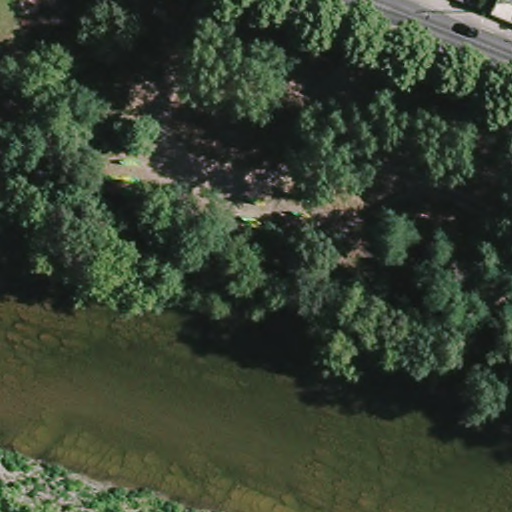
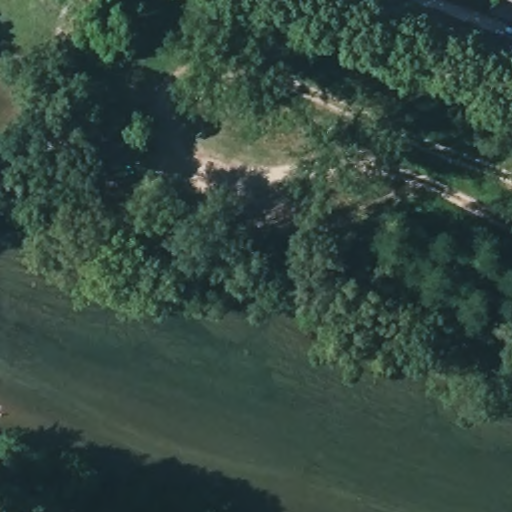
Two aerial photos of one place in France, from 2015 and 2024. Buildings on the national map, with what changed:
unchanged [(490,16),(497,0),(512,0),(512,23),(511,25),(490,16)]
unchanged [(97,153),(97,154),(97,155),(96,155),(96,156),(96,157),(96,158),(96,159),(96,160),(95,160),(95,161),(95,162),(95,163),(95,164),(95,165),(94,165),(94,166),(93,167),(93,168),(93,169),(92,169),(91,170),(91,171),(90,172),(90,173),(89,174),(88,175),(88,176),(87,176),(86,177),(86,178),(85,178),(85,179),(84,179),(83,180),(82,181),(81,181),(80,182),(79,183),(78,183),(78,184),(77,184),(76,184),(76,185),(75,185),(74,185),(73,185),(72,186),(71,186),(70,187),(69,187),(68,187),(67,187),(66,187),(66,188),(65,188),(64,188),(63,188),(61,188),(58,188),(55,188),(53,187),(52,187),(51,187),(50,187),(48,186),(47,186),(46,185),(45,185),(43,184),(42,183),(41,183),(40,183),(40,182),(38,181),(38,180),(37,180),(36,180),(36,179),(35,179),(35,178),(34,177),(33,177),(33,176),(32,175),(31,174),(30,173),(30,172),(29,171),(28,171),(28,170),(28,169),(27,168),(27,167),(26,167),(26,166),(26,165),(25,164),(25,163),(25,162),(25,161),(24,160),(24,159),(24,158),(23,158),(23,157),(23,156),(23,155),(23,154),(23,153),(23,152),(23,151),(23,150),(23,149),(23,148),(23,147),(23,146),(23,145),(23,144),(24,144),(24,143),(24,142),(25,142),(25,141),(25,140),(25,139),(25,138),(25,137),(26,137),(26,136),(26,135),(27,134),(28,134),(28,133),(28,132),(29,131),(30,131),(30,130),(30,129),(31,128),(31,127),(32,127),(33,126),(34,125),(35,124),(35,123),(36,123),(36,122),(37,122),(38,122),(38,121),(39,120),(40,120),(41,119),(42,119),(43,118),(44,118),(45,117),(46,117),(47,116),(48,116),(49,116),(50,116),(50,115),(51,115),(52,115),(53,115),(54,115),(55,114),(56,114),(58,114),(59,114),(60,114),(61,114),(62,114),(63,114),(65,114),(65,115),(66,115),(67,115),(68,115),(69,115),(70,115),(70,116),(71,116),(72,116),(73,116),(73,117),(75,117),(76,118),(77,118),(78,119),(79,119),(80,120),(81,121),(82,121),(83,122),(83,123),(84,123),(85,123),(85,124),(86,125),(87,126),(88,126),(88,127),(88,128),(89,128),(90,129),(90,130),(91,131),(91,132),(92,132),(92,133),(93,134),(93,135),(93,136),(94,136),(94,137),(95,138),(95,139),(95,140),(95,141),(96,142),(96,143),(96,144),(96,145),(96,146),(96,147),(97,148),(97,149),(97,150),(97,151),(97,152),(97,153)]

